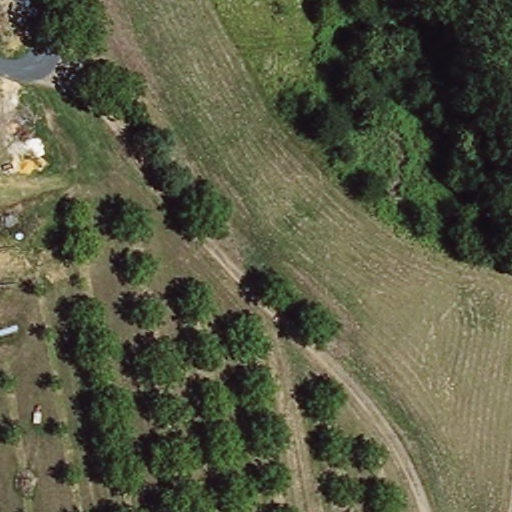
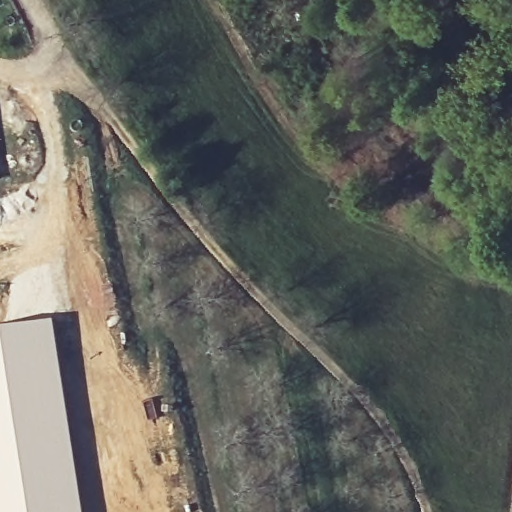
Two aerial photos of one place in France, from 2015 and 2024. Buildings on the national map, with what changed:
new [(50,322),(81,512),(0,512),(0,330),(50,322)]

